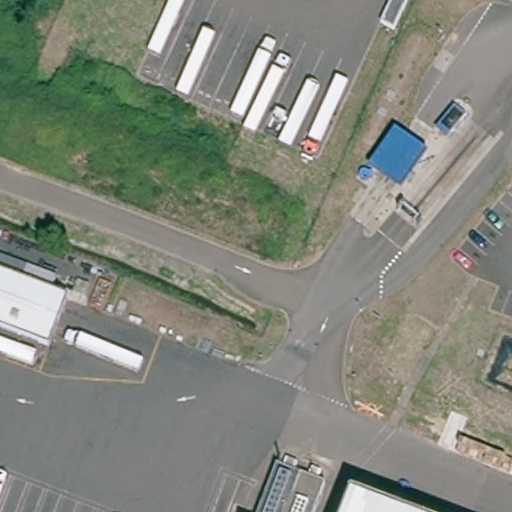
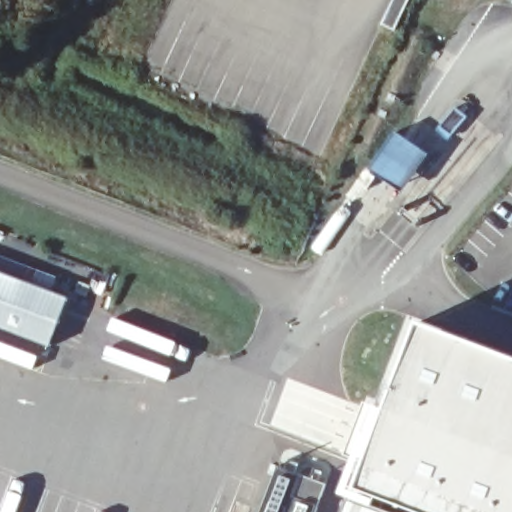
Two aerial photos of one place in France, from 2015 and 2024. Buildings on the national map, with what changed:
unchanged [(442,127),(461,111),(471,122),(452,139),(442,127)]
unchanged [(361,180),(398,136),(417,152),(380,196),(361,180)]
unchanged [(0,326),(0,254),(61,277),(54,292),(72,298),(54,345),(0,326)]
new [(512,512),(389,512),(356,499),(420,318),(512,354),(512,512)]
unchanged [(280,467),(328,485),(318,512),(257,512),(280,467)]
unchanged [(353,498),(389,512),(348,512),(353,498)]

